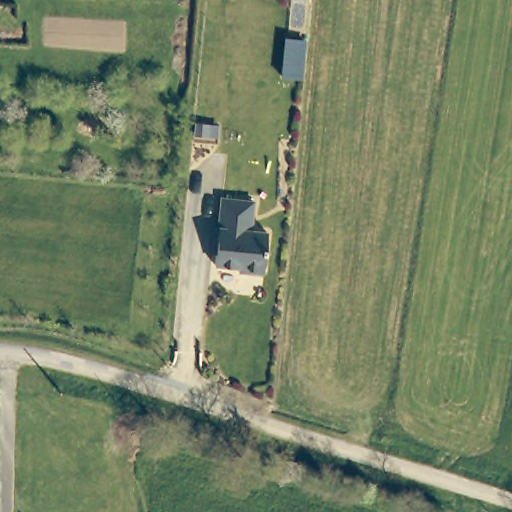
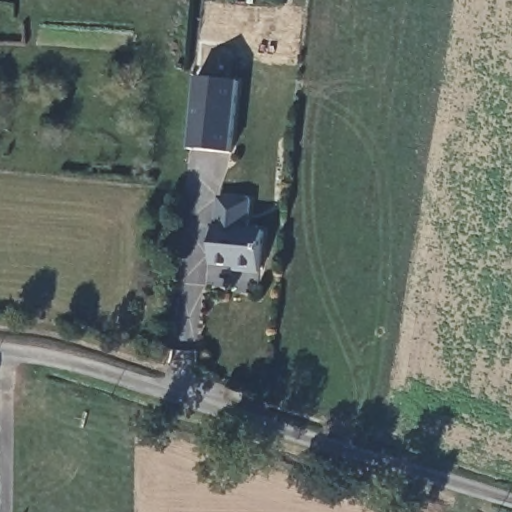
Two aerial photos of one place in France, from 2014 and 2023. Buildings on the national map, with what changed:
demolished [(285,31),(304,33),(301,70),(282,69),(285,31)]
new [(234,153),(191,148),(198,77),(241,81),(234,153)]
unchanged [(216,267),(218,248),(214,248),(217,229),(220,229),(224,200),(256,203),(252,233),(270,235),(265,277),(240,274),(240,269),(216,267)]

